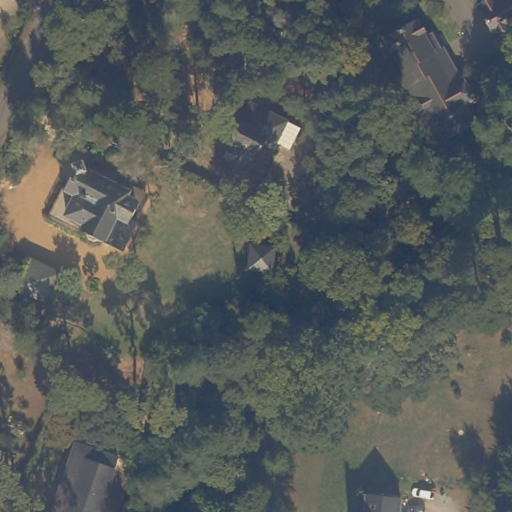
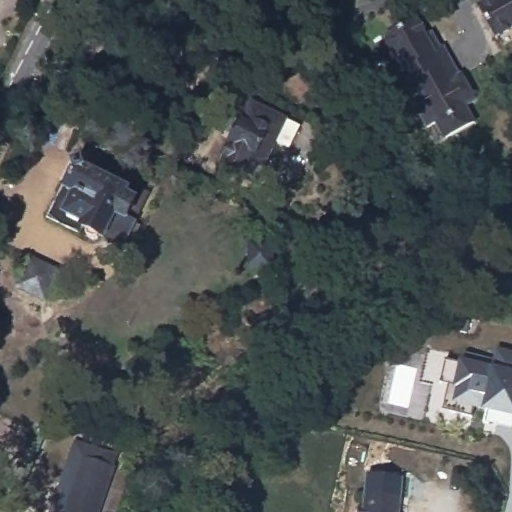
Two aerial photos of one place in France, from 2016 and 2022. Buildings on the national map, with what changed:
unchanged [(496,39),(477,6),(488,0),(512,0),(512,29),(496,39)]
unchanged [(404,88),(396,73),(402,69),(384,38),(417,19),(434,51),(443,46),(451,61),(404,88)]
unchanged [(459,75),(456,78),(469,104),(470,104),(469,105),(466,107),(467,109),(474,123),(455,133),(444,139),(435,124),(426,129),(404,88),(451,61),(459,75)]
unchanged [(214,173),(225,150),(223,149),(242,110),(279,129),(293,136),(283,159),(268,152),(249,190),(214,173)]
unchanged [(133,186),(129,193),(140,197),(119,240),(101,233),(100,235),(98,237),(95,237),(90,234),(90,232),(89,230),(91,228),(84,224),(81,229),(50,214),(64,183),(70,185),(81,163),(133,186)]
unchanged [(66,270),(52,299),(24,287),(39,258),(66,270)]
new [(463,361),(468,354),(494,360),(499,348),(512,351),(512,423),(510,429),(482,423),(483,411),(472,409),(471,417),(441,409),(447,384),(441,383),(446,359),(463,361)]
unchanged [(88,452),(84,464),(83,464),(67,512),(50,512),(73,447),(88,452)]
unchanged [(83,464),(84,464),(113,473),(100,512),(67,512),(83,464)]
unchanged [(356,510),(363,511),(364,489),(398,493),(396,512),(356,512),(356,510)]

